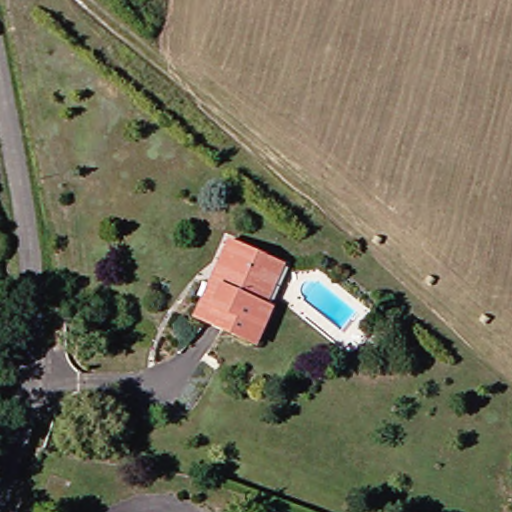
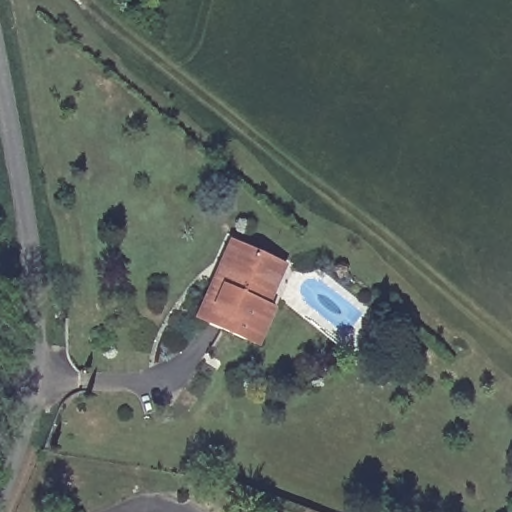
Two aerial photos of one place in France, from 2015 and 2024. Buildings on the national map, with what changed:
unchanged [(209,267),(219,243),(269,264),(277,267),(259,308),(264,310),(249,347),(197,324),(188,319),(209,267)]

